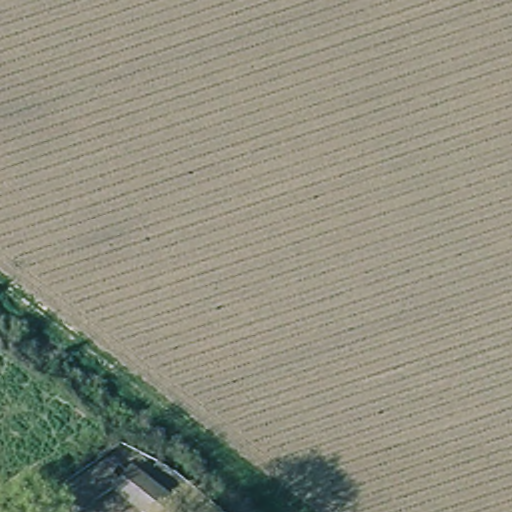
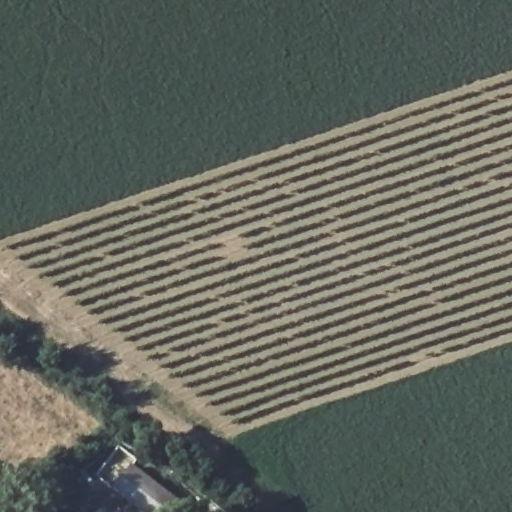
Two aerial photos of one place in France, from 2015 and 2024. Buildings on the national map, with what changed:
unchanged [(163,512),(138,512),(105,486),(122,462),(151,483),(172,501),(163,512)]

